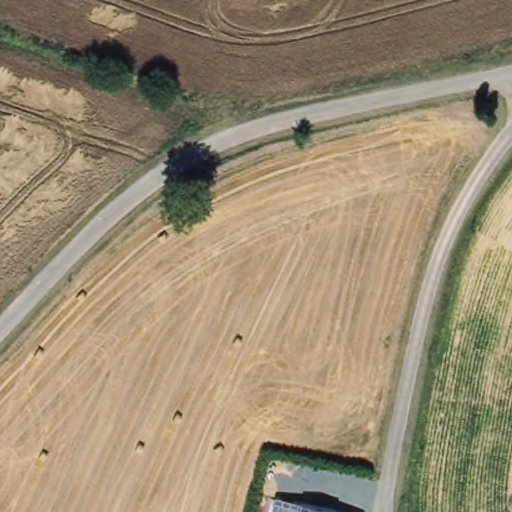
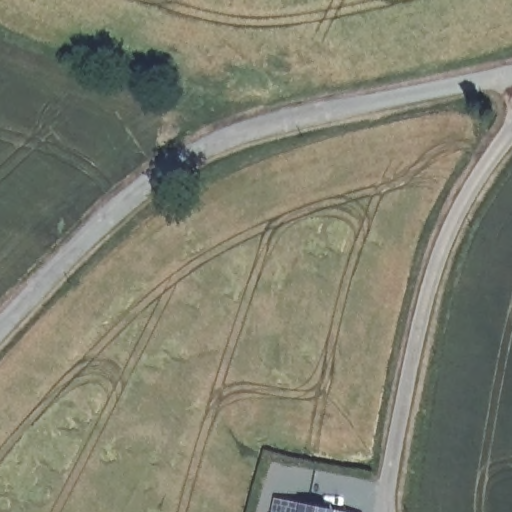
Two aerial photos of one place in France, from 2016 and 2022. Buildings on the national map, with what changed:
unchanged [(273,499),(340,512),(271,512),(273,499)]

